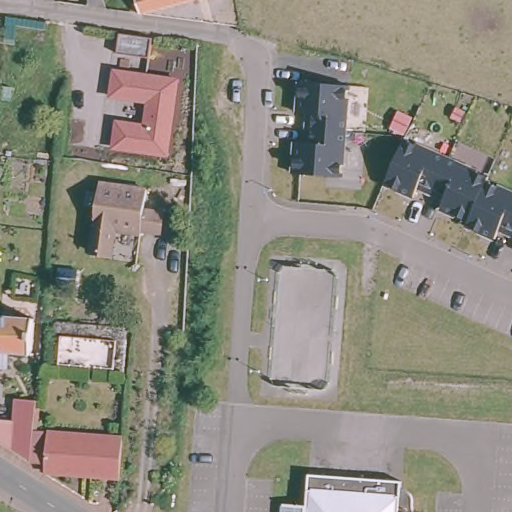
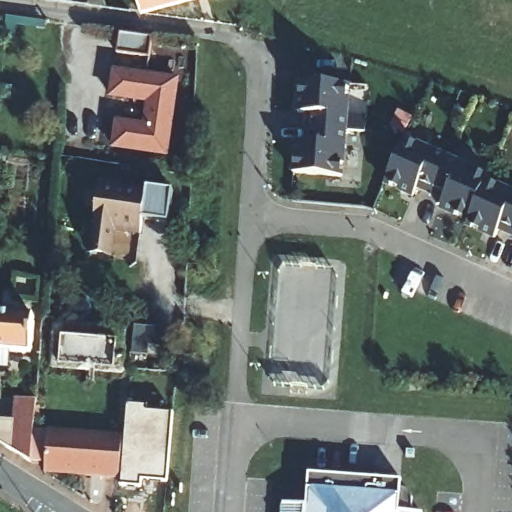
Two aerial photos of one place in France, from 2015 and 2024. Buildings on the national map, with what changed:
unchanged [(54,2),(40,0),(53,0),(54,2)]
demolished [(59,3),(59,0),(72,0),(72,5),(59,3)]
unchanged [(102,9),(89,7),(87,0),(100,0),(102,9)]
unchanged [(136,0),(195,0),(141,14),(136,0)]
unchanged [(181,77),(170,157),(112,149),(116,120),(144,123),(146,104),(109,100),(112,69),(181,77)]
unchanged [(299,145),(309,146),(310,130),(312,117),(301,116),(304,85),(352,89),(348,133),(344,181),(295,176),(299,145)]
unchanged [(2,86),(12,87),(11,101),(1,100),(2,86)]
unchanged [(512,196),(512,238),(501,232),(497,242),(469,229),(471,225),(442,212),(446,202),(433,197),(420,191),(416,200),(387,188),(387,187),(407,143),(449,162),(491,181),(489,185),(512,196)]
unchanged [(166,235),(145,232),(145,234),(118,231),(115,255),(95,253),(104,184),(150,190),(147,210),(169,213),(166,235)]
new [(74,270),(72,288),(56,286),(59,268),(74,270)]
unchanged [(128,325),(124,373),(49,366),(53,318),(128,325)]
new [(164,347),(150,346),(149,355),(132,355),(135,326),(166,329),(164,347)]
new [(127,404),(147,406),(147,411),(172,413),(167,480),(141,477),(140,486),(120,485),(119,477),(122,438),(127,404)]
unchanged [(13,408),(36,410),(30,472),(9,460),(13,408)]
unchanged [(44,472),(47,432),(122,438),(119,477),(44,472)]
unchanged [(405,489),(407,489),(410,491),(412,495),(414,499),(413,503),(413,508),(415,512),(284,512),(285,504),(307,505),(309,474),(402,481),(401,488),(402,488),(405,489)]

